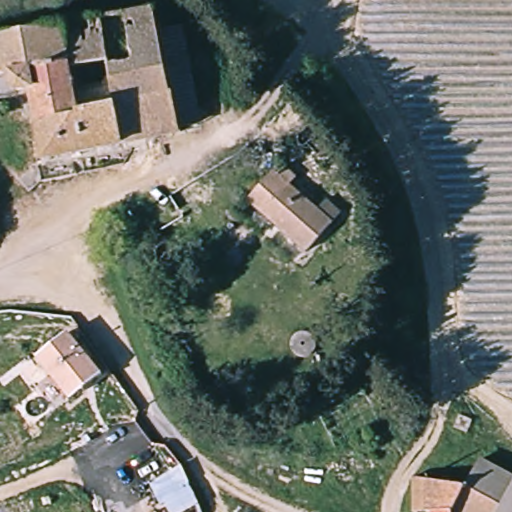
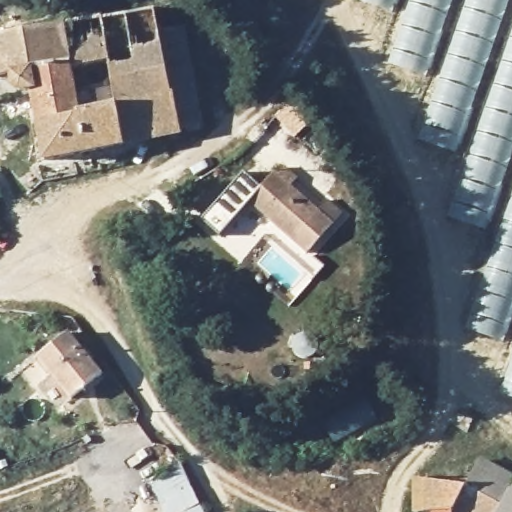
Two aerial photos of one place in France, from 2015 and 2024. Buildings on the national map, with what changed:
new [(497,237),(447,215),(466,160),(418,140),(437,80),(388,61),(401,17),(359,0),(512,0),(512,347),(465,330),(497,237)]
unchanged [(185,139),(46,164),(35,98),(0,104),(0,41),(157,14),(160,30),(163,30),(165,38),(183,136),(185,139)]
unchanged [(183,35),(200,134),(183,136),(165,38),(183,35)]
unchanged [(280,176),(285,170),(292,177),(288,183),(335,228),(305,259),(245,205),(276,173),(280,176)]
new [(245,205),(220,236),(202,219),(243,172),(261,188),(245,205)]
unchanged [(308,338),(312,340),(315,343),(317,347),(317,352),(316,356),(313,360),(309,362),(304,363),(300,361),(296,359),(293,355),(292,350),(293,346),(295,342),(298,339),(303,337),(308,338)]
unchanged [(100,377),(70,401),(40,361),(71,338),(100,377)]
new [(512,356),(512,400),(500,394),(512,356)]
unchanged [(468,483),(483,460),(512,477),(512,487),(502,502),(468,483)]
unchanged [(200,504),(183,512),(169,512),(165,505),(160,507),(151,484),(180,464),(200,504)]
unchanged [(458,477),(468,483),(502,502),(512,487),(512,512),(425,512),(425,476),(458,477)]
new [(204,512),(183,512),(200,504),(204,512)]

